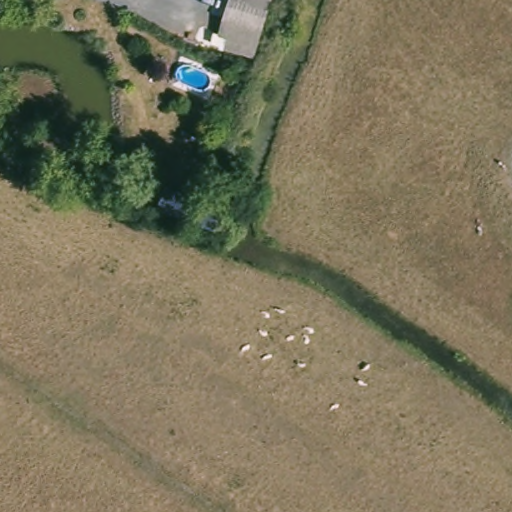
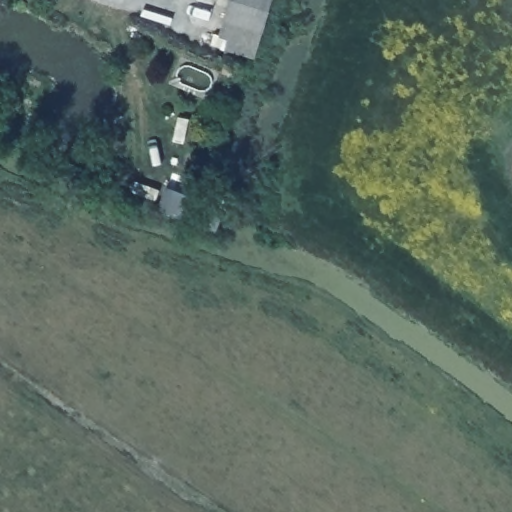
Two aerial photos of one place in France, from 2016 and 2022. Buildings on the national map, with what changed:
unchanged [(220,37),(230,0),(273,0),(259,49),(220,37)]

